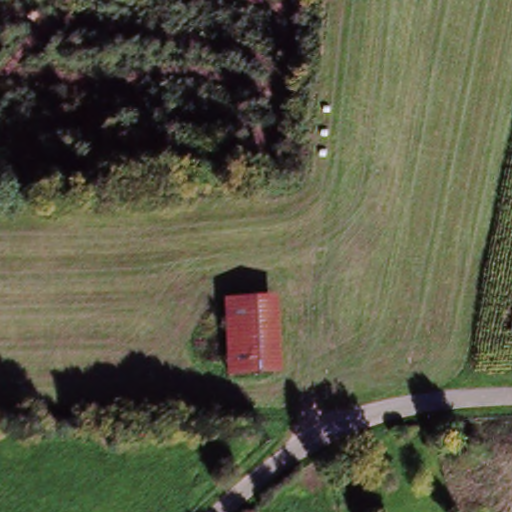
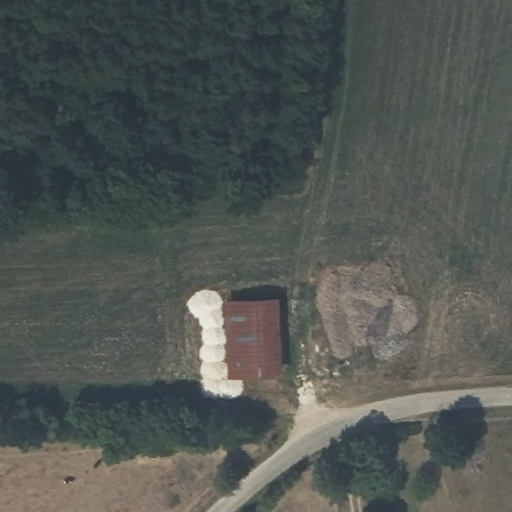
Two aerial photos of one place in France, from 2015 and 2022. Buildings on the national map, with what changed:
unchanged [(284,297),(284,373),(248,373),(247,297),(284,297)]

